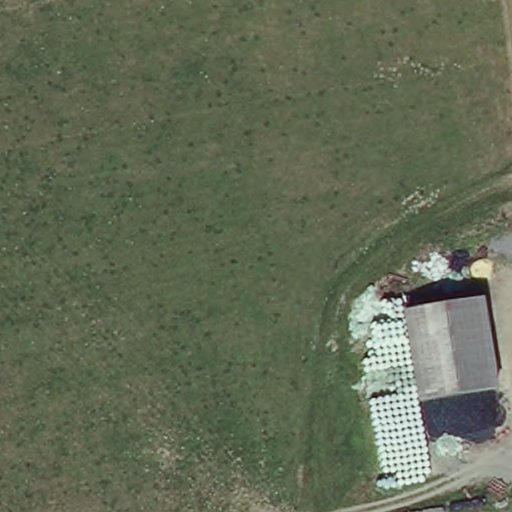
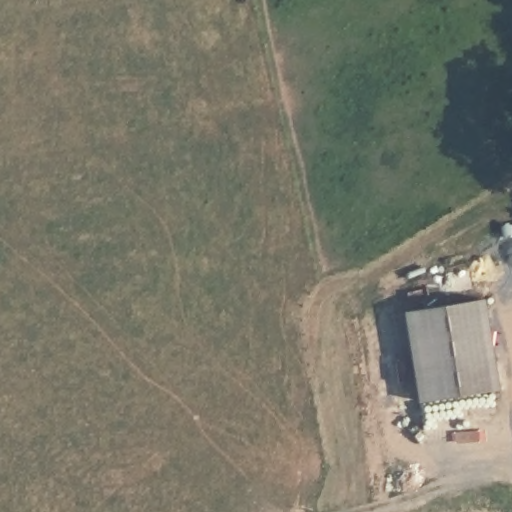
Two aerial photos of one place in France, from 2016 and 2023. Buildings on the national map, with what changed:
unchanged [(497,390),(412,401),(394,310),(487,298),(497,390)]

